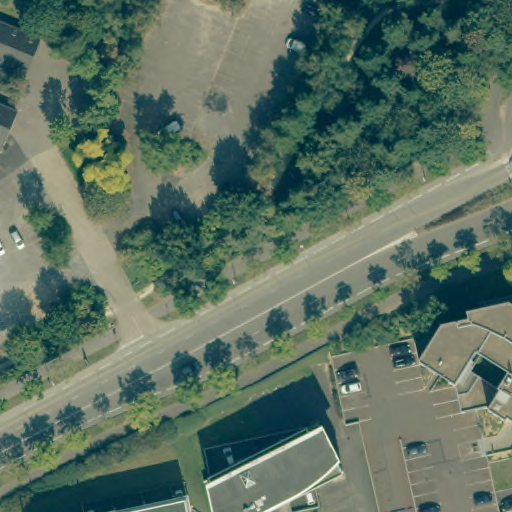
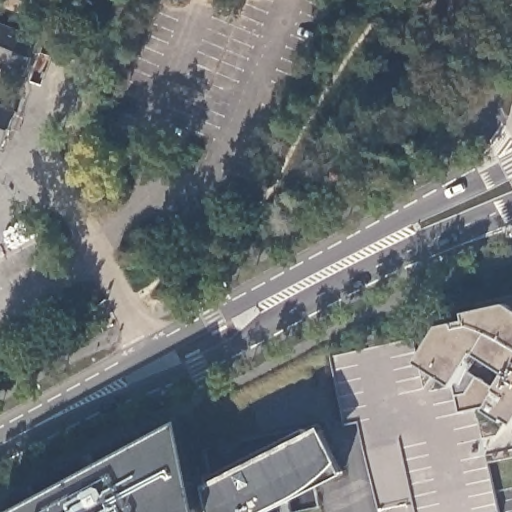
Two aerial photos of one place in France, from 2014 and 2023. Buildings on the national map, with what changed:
unchanged [(33,34),(19,69),(0,61),(0,20),(33,34)]
unchanged [(11,106),(0,133),(0,101),(11,106)]
unchanged [(463,314),(462,308),(476,305),(475,298),(512,289),(512,418),(486,411),(498,384),(510,366),(480,347),(468,365),(450,385),(416,362),(415,356),(437,321),(463,314)]
unchanged [(415,356),(416,362),(450,385),(468,365),(498,384),(486,411),(512,418),(512,451),(484,458),(491,487),(496,511),(489,512),(412,512),(395,435),(359,442),(353,417),(340,419),(327,351),(410,333),(415,356)]
new [(185,424),(205,512),(21,512),(185,424)]
unchanged [(210,482),(307,429),(311,435),(320,431),(342,474),(269,512),(217,512),(210,482)]
demolished [(102,512),(101,508),(185,490),(190,512),(100,512),(102,512)]
demolished [(75,508),(76,512),(58,512),(75,508)]

